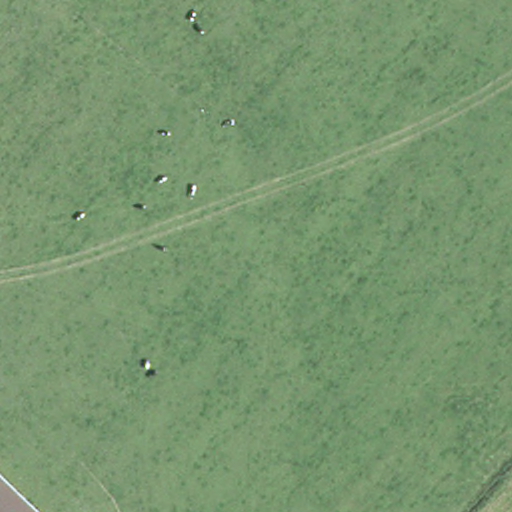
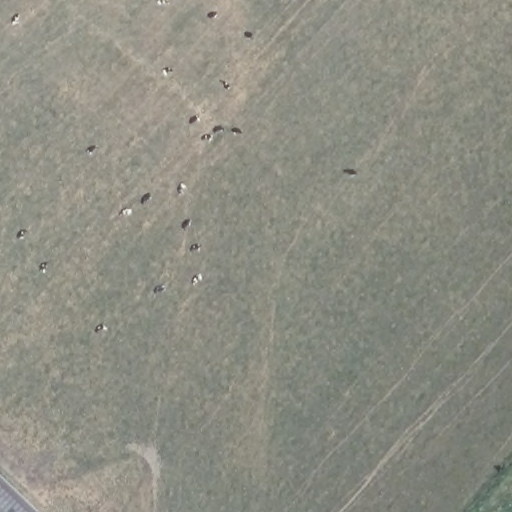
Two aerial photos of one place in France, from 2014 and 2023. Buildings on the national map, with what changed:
unchanged [(0,512),(0,476),(37,512),(0,512)]

